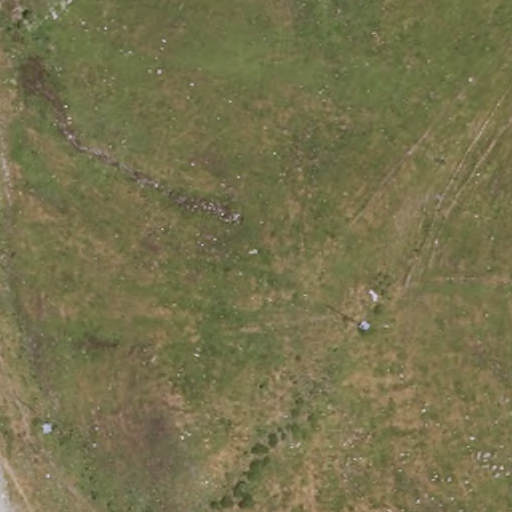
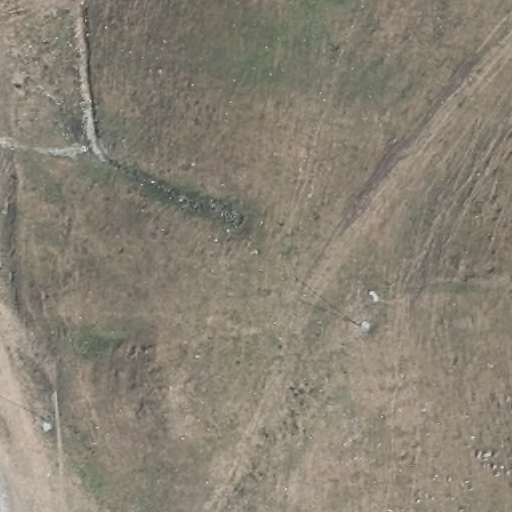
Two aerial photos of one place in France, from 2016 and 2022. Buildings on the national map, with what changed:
[]

